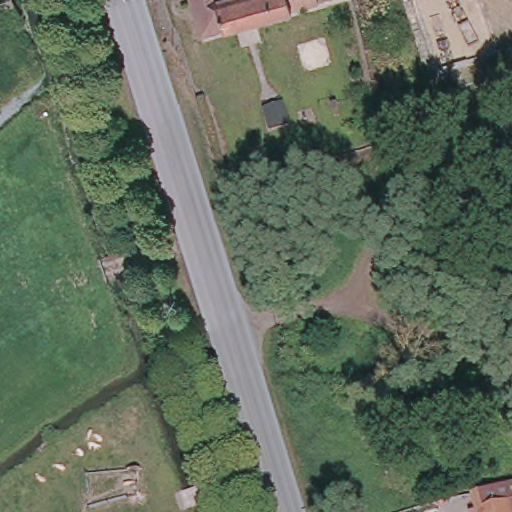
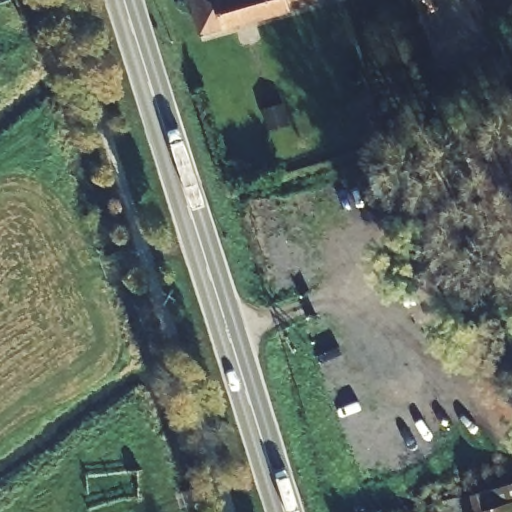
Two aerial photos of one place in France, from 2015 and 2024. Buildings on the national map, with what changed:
unchanged [(198,0),(309,0),(207,30),(198,0)]
unchanged [(483,506),(502,501),(512,498),(512,512),(485,512),(483,506)]

